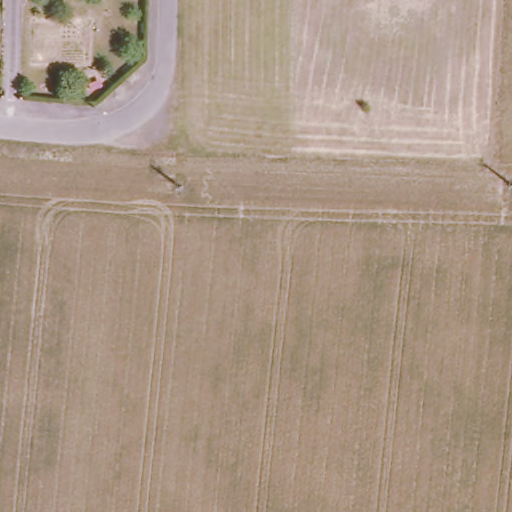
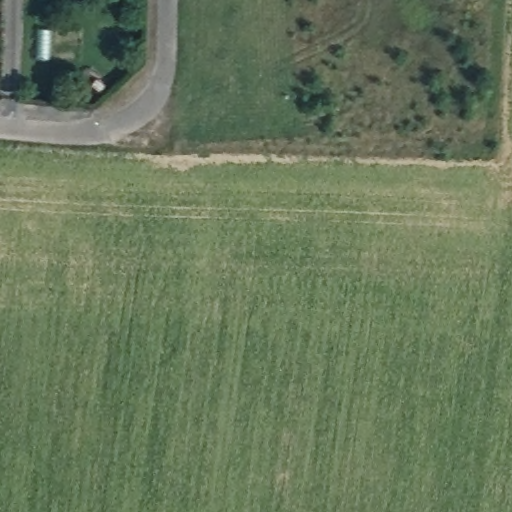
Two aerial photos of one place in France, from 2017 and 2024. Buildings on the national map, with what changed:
[]

